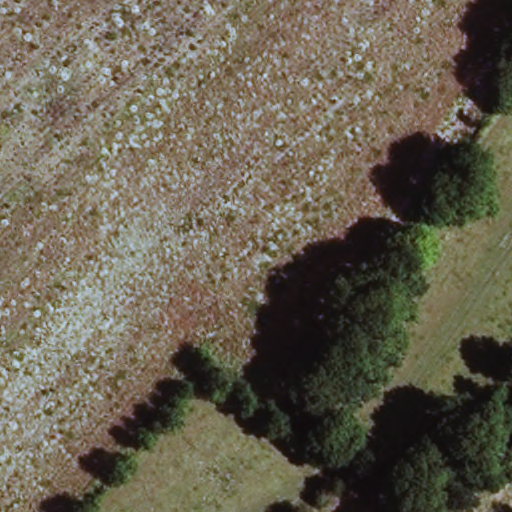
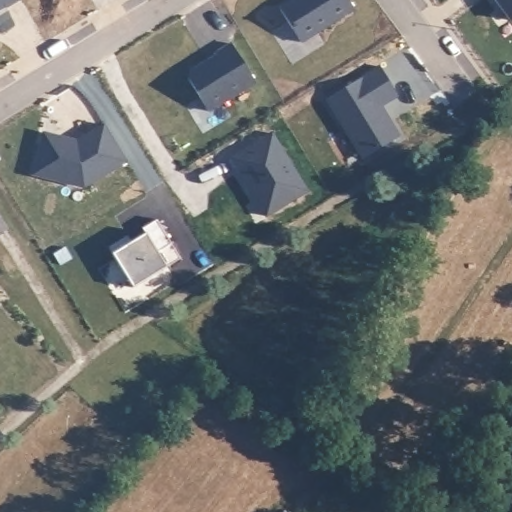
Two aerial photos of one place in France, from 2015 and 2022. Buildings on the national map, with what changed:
new [(5,7),(0,10),(0,0),(20,0),(5,9),(5,7)]
new [(295,2),(298,0),(347,0),(355,11),(301,44),(280,10),(295,1),(295,2)]
new [(495,0),(512,0),(512,23),(495,0)]
new [(189,81),(190,74),(219,56),(217,54),(232,45),(232,46),(255,84),(208,113),(192,88),(189,81)]
new [(380,69),(399,99),(381,109),(400,140),(364,162),(327,102),(380,69)]
new [(43,135),(64,140),(63,143),(76,146),(77,144),(105,126),(125,160),(116,170),(84,189),(33,177),(43,135)]
new [(272,135),(307,193),(266,219),(256,201),(258,200),(255,193),(252,194),(231,160),(272,135)]
new [(127,238),(131,244),(145,235),(142,230),(157,222),(180,261),(132,290),(107,249),(127,238)]

